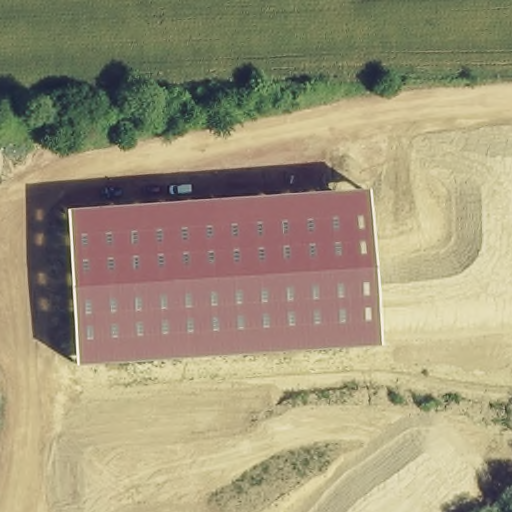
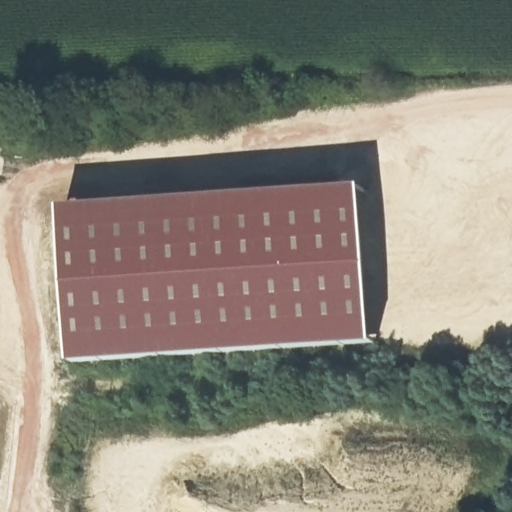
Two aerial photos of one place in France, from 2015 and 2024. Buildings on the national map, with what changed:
unchanged [(364,189),(374,343),(77,365),(65,208),(364,189)]

